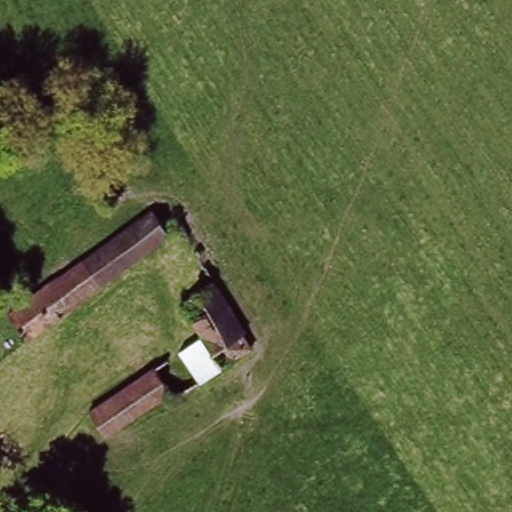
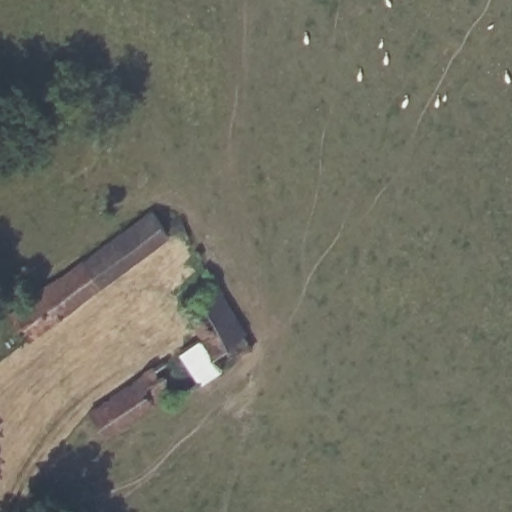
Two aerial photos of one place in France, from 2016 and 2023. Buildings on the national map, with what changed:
unchanged [(15,311),(152,204),(173,231),(35,337),(15,311)]
unchanged [(165,395),(102,435),(85,413),(200,338),(181,304),(213,285),(237,327),(251,351),(222,369),(170,402),(165,395)]

